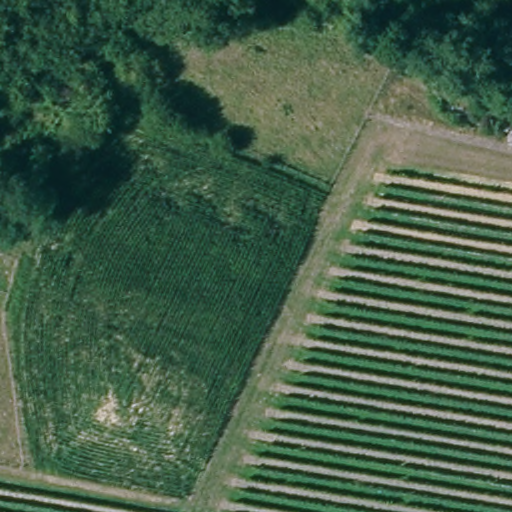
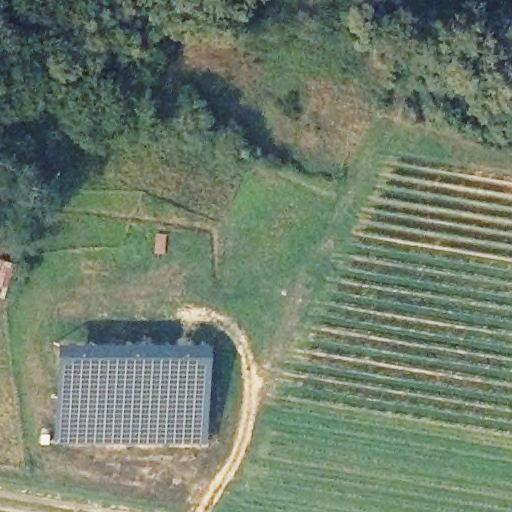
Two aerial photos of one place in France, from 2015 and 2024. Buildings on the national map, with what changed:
new [(204,443),(51,442),(52,341),(205,342),(204,443)]

